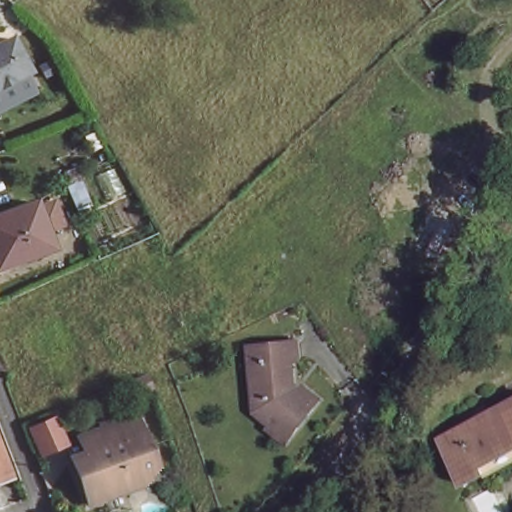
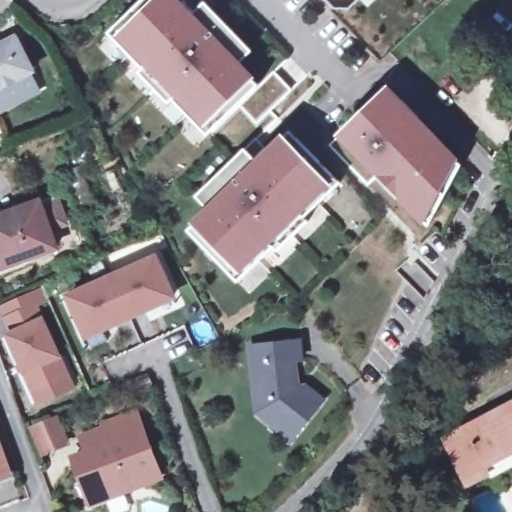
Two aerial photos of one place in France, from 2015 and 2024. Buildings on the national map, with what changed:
new [(179,6),(185,0),(198,0),(249,51),(236,65),(257,87),(271,72),(290,89),(271,110),(277,117),(255,139),(233,160),(212,135),(207,136),(172,99),(167,103),(139,75),(143,70),(107,34),(141,0),(173,0),(179,6)]
unchanged [(0,86),(0,44),(11,38),(29,71),(0,86)]
new [(400,104),(402,101),(415,116),(414,119),(467,171),(429,224),(377,174),(367,184),(328,145),(387,90),(400,104)]
new [(288,132),(339,184),(303,219),(308,222),(276,254),(273,250),(238,284),(187,232),(209,211),(268,152),(288,132)]
unchanged [(56,207),(62,228),(46,234),(53,255),(0,273),(0,220),(38,207),(39,212),(56,207)]
new [(156,255),(176,300),(82,341),(62,295),(156,255)]
new [(45,319),(60,356),(76,388),(35,405),(20,373),(2,332),(0,326),(0,304),(35,290),(45,319)]
unchanged [(272,420),(251,405),(244,345),(292,340),(294,358),(282,360),(284,386),(294,389),(301,381),(319,396),(293,428),(289,433),(272,420)]
unchanged [(154,390),(132,396),(127,383),(149,375),(154,390)]
unchanged [(480,475),(459,438),(500,416),(499,413),(512,406),(512,457),(480,475)]
unchanged [(76,475),(70,458),(90,450),(85,436),(101,431),(99,425),(132,412),(134,420),(155,480),(99,499),(86,503),(76,475)]
new [(71,447),(43,461),(28,427),(57,415),(71,447)]
unchanged [(0,478),(0,452),(9,475),(0,478)]

